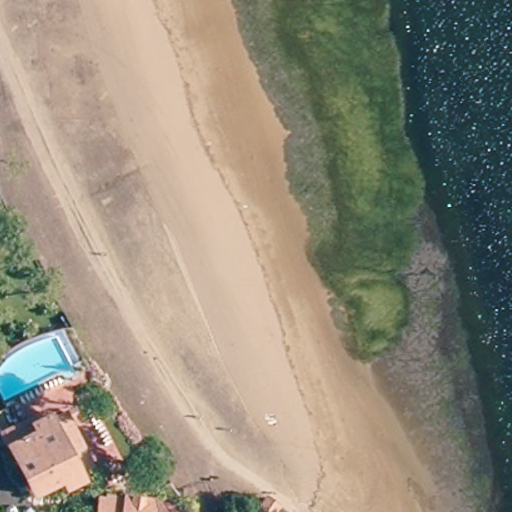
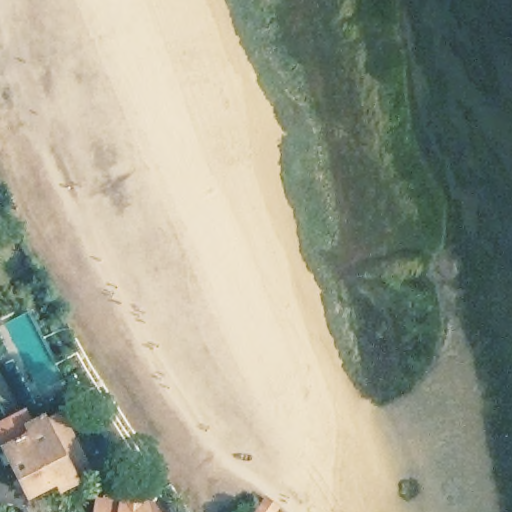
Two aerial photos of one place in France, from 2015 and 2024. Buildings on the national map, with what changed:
unchanged [(19,426),(32,420),(35,424),(50,416),(78,468),(62,476),(65,483),(51,491),(46,483),(18,497),(0,462),(0,430),(17,421),(19,426)]
unchanged [(280,508),(278,512),(259,512),(268,499),(280,508)]
unchanged [(118,508),(139,512),(94,512),(95,507),(101,508),(118,510),(118,508)]

